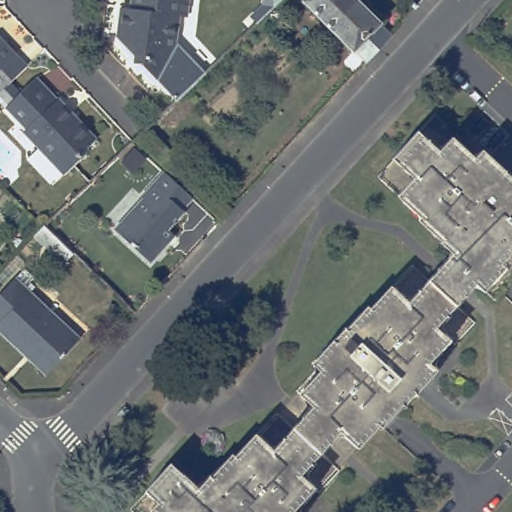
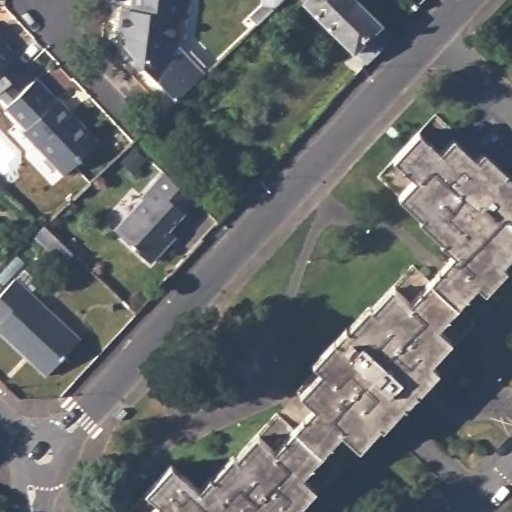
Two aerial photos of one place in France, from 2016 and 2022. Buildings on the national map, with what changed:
unchanged [(176,41),(186,51),(206,70),(177,97),(117,39),(120,6),(130,8),(131,0),(189,0),(187,16),(180,15),(176,41)]
unchanged [(250,11),(262,0),(273,0),(255,17),(250,11)]
unchanged [(304,0),(363,0),(380,17),(390,26),(364,57),(352,46),(304,0)]
unchanged [(22,61),(0,82),(0,38),(22,61)]
unchanged [(57,99),(96,139),(79,155),(81,158),(64,175),(37,146),(36,140),(4,107),(35,78),(56,100),(57,99)]
unchanged [(198,490),(210,476),(213,479),(234,455),(236,457),(317,368),(313,364),(334,341),(333,340),(345,326),(349,330),(368,307),(371,310),(412,265),(430,281),(454,254),(440,244),(444,240),(421,217),(423,215),(379,175),(433,116),(477,157),(481,152),(504,174),(505,172),(512,178),(512,275),(492,297),(476,282),(456,305),(471,318),(430,363),(434,367),(413,390),(415,391),(403,405),(400,402),(390,413),(389,412),(298,512),(136,512),(131,507),(170,464),(198,490)]
unchanged [(123,158),(132,148),(142,157),(132,167),(123,158)]
unchanged [(142,199),(140,197),(163,172),(191,197),(180,209),(183,212),(167,230),(173,235),(148,261),(113,230),(142,199)]
unchanged [(33,236),(43,225),(58,240),(63,244),(53,254),(48,250),(33,236)]
unchanged [(0,334),(0,294),(15,278),(79,340),(49,371),(44,376),(23,356),(0,334)]

